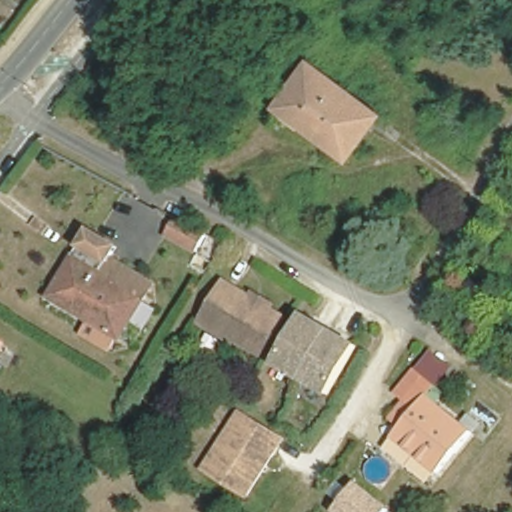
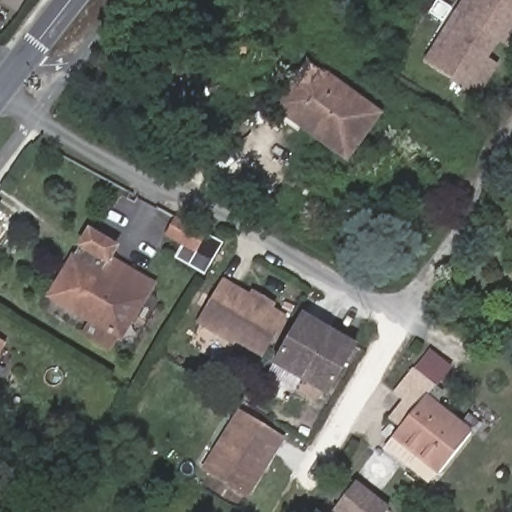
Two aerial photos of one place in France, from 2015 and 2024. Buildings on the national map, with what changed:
new [(500,42),(489,58),(500,64),(478,97),(422,62),(461,0),(512,0),(512,45),(510,48),(500,42)]
unchanged [(379,113),(346,159),(274,107),(307,62),(379,113)]
unchanged [(208,231),(198,248),(169,231),(179,215),(208,231)]
unchanged [(50,298),(81,244),(91,226),(114,239),(119,242),(116,248),(113,253),(156,278),(145,297),(120,339),(50,298)]
unchanged [(261,351),(232,334),(231,337),(201,319),(224,279),(252,295),(256,288),(272,297),(268,305),(282,313),(261,351)]
unchanged [(361,343),(328,398),(271,367),(303,309),(361,343)]
unchanged [(4,348),(0,355),(0,346),(4,348)]
unchanged [(438,473),(403,445),(392,436),(398,427),(388,418),(403,401),(395,395),(414,372),(432,386),(446,397),(438,405),(471,432),(438,473)]
unchanged [(283,439),(248,496),(208,472),(244,415),(283,439)]
unchanged [(387,512),(334,512),(333,511),(357,479),(392,507),(387,512)]

